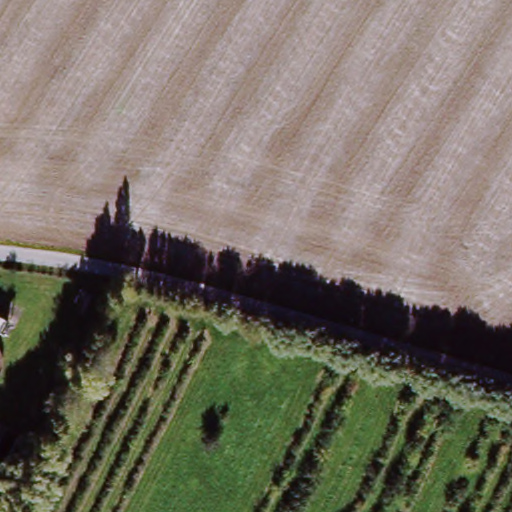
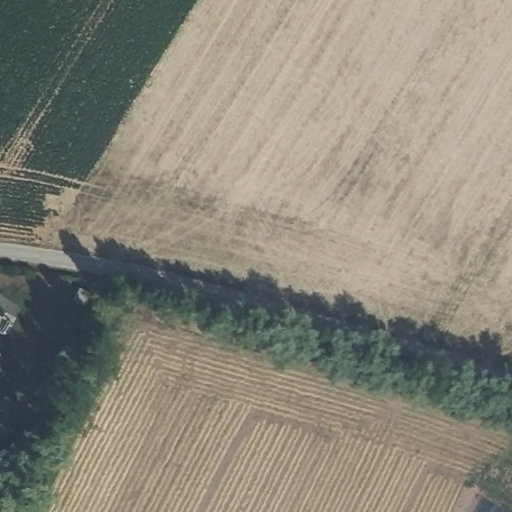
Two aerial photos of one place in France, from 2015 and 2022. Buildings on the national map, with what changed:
unchanged [(82,295),(91,300),(86,312),(75,306),(82,295)]

